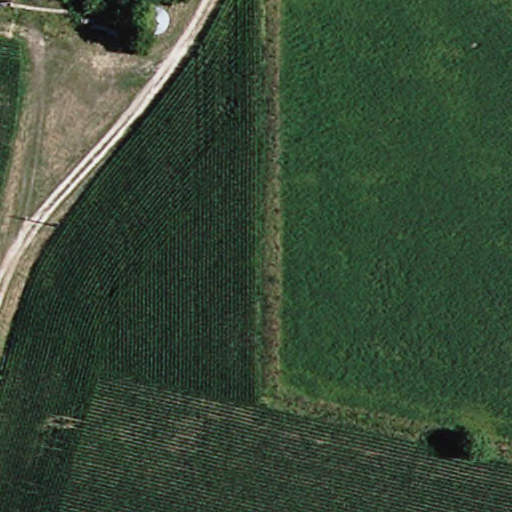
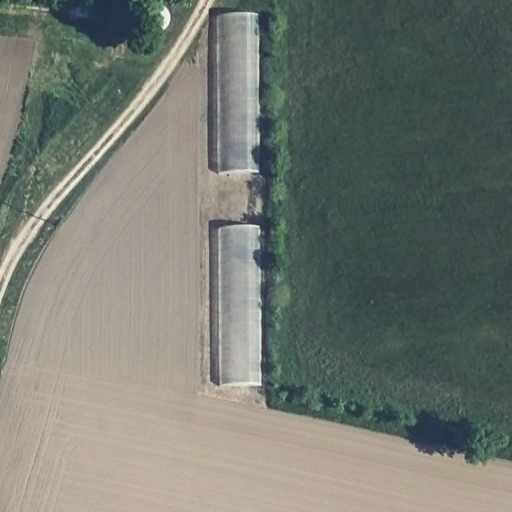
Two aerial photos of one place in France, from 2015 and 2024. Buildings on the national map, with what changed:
new [(151,45),(135,53),(116,44),(116,39),(120,20),(140,15),(151,25),(151,38),(151,45)]
new [(257,172),(217,173),(217,16),(258,15),(257,172)]
new [(261,386),(220,386),(219,229),(259,228),(261,386)]

